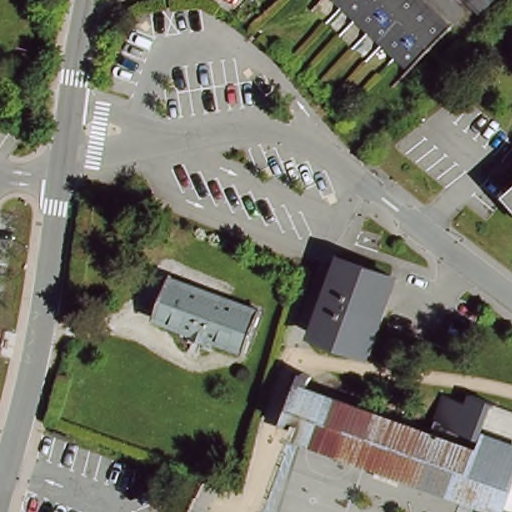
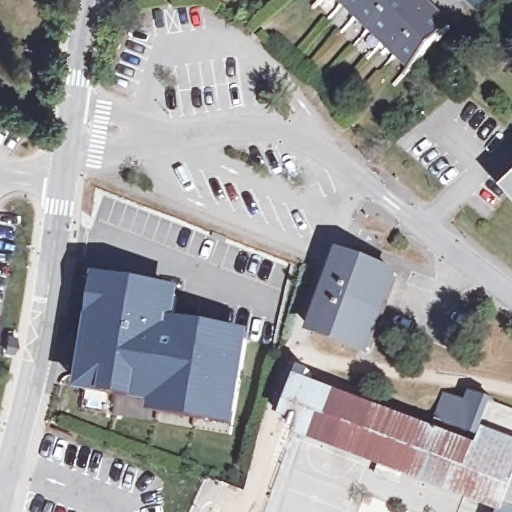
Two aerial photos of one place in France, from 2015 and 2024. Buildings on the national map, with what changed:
unchanged [(415,68),(343,0),(424,0),(453,27),(415,68)]
unchanged [(470,0),(493,0),(482,12),(470,0)]
unchanged [(510,199),(512,196),(512,201),(510,199)]
new [(227,237),(225,242),(212,237),(213,232),(227,237)]
unchanged [(390,279),(365,350),(322,333),(337,292),(333,291),(344,262),(390,279)]
demolished [(248,352),(156,317),(161,303),(172,276),(263,310),(248,352)]
new [(135,405),(134,402),(80,396),(99,279),(185,291),(180,322),(253,332),(238,429),(152,417),(154,407),(135,405)]
new [(5,331),(12,332),(9,346),(2,344),(5,331)]
unchanged [(492,505),(409,473),(405,486),(381,477),(385,465),(298,432),(302,421),(290,417),(302,383),(303,383),(307,372),(317,375),(312,387),(435,433),(450,395),(472,403),(475,397),(476,394),(497,402),(495,407),(484,436),(490,438),(491,436),(512,444),(512,512),(510,512),(492,505)]

